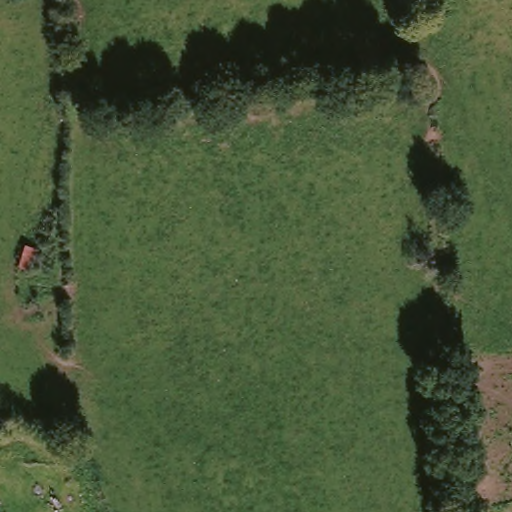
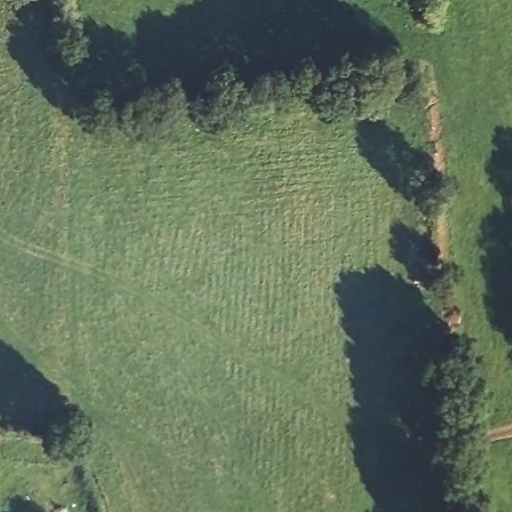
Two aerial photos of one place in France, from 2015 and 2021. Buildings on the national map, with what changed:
[]

